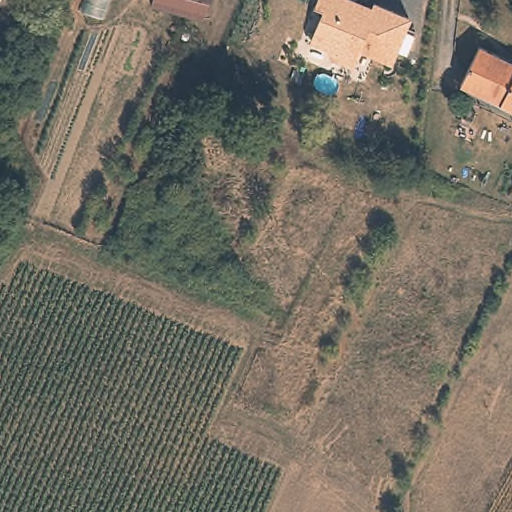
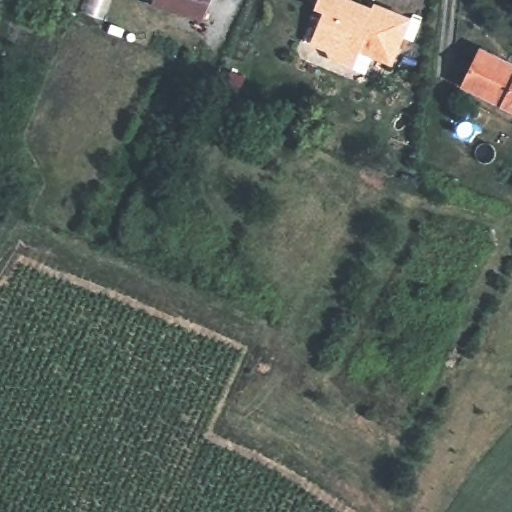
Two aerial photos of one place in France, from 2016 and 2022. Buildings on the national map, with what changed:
unchanged [(201,17),(155,5),(156,0),(209,0),(201,17)]
unchanged [(373,5),(373,0),(416,17),(395,66),(360,55),(352,73),(331,65),(326,52),(307,45),(320,12),(312,9),(316,0),(358,0),(373,5)]
unchanged [(512,61),(512,110),(460,85),(480,45),(512,61)]

